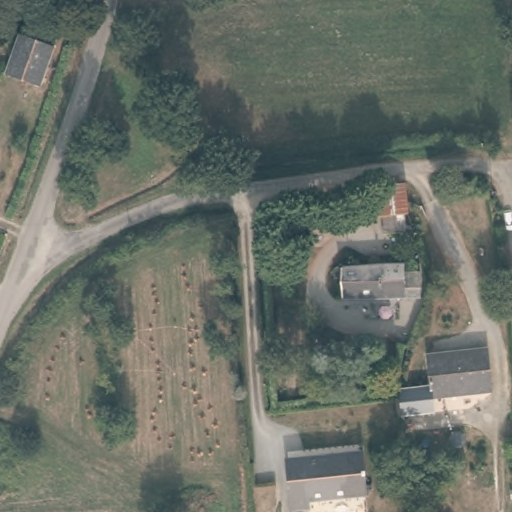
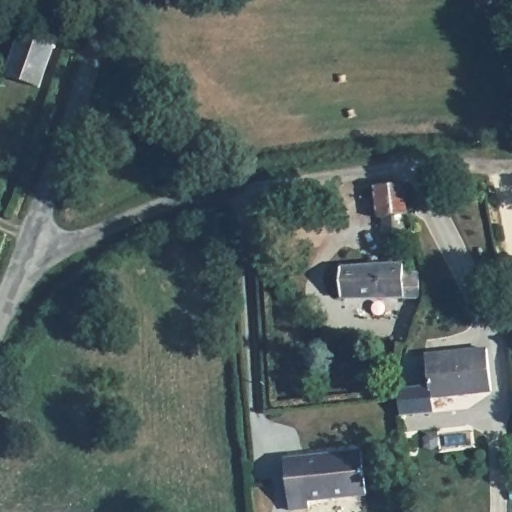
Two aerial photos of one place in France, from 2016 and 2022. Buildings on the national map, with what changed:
unchanged [(24,29),(56,35),(42,88),(9,83),(24,29)]
unchanged [(416,225),(404,228),(404,240),(386,240),(384,229),(374,229),(377,198),(377,186),(414,184),(416,225)]
unchanged [(407,301),(349,301),(348,267),(406,268),(407,283),(407,301)]
unchanged [(486,348),(489,392),(429,398),(428,354),(486,348)]
unchanged [(305,503),(304,511),(302,512),(285,512),(282,460),(363,449),(369,493),(305,503)]

